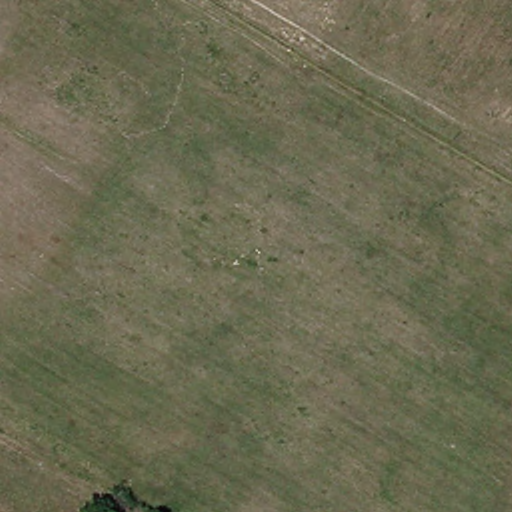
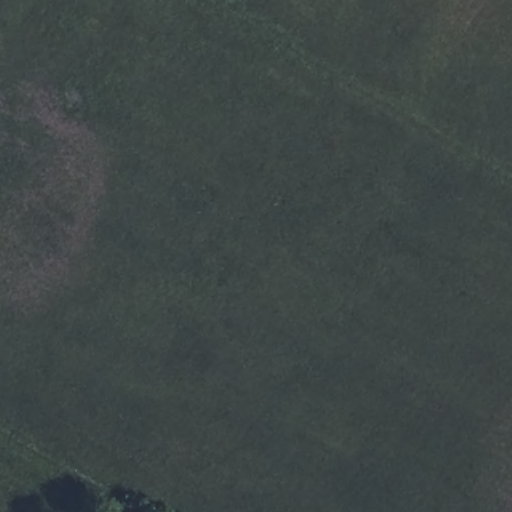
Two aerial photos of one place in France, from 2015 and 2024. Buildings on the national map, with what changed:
[]

